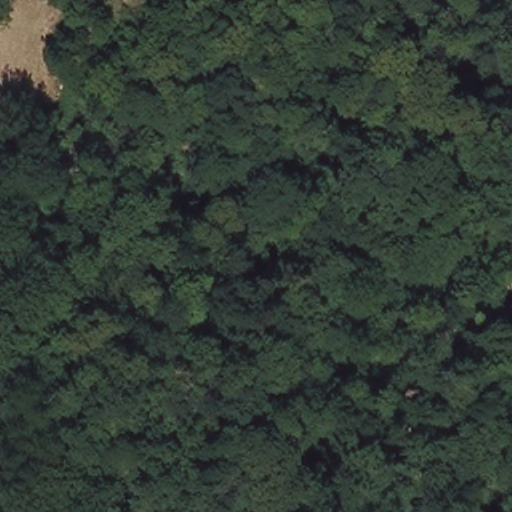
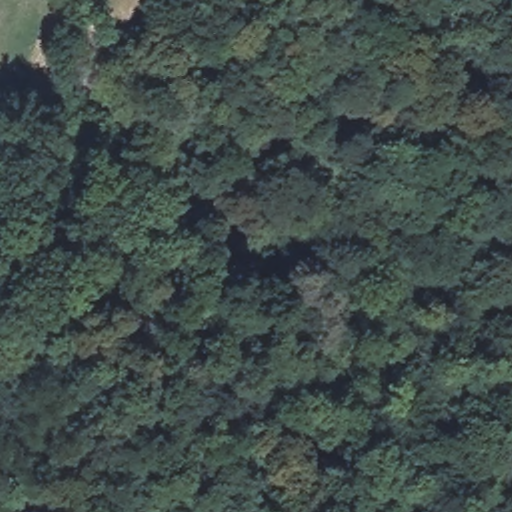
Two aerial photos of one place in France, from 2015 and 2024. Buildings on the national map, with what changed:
[]

